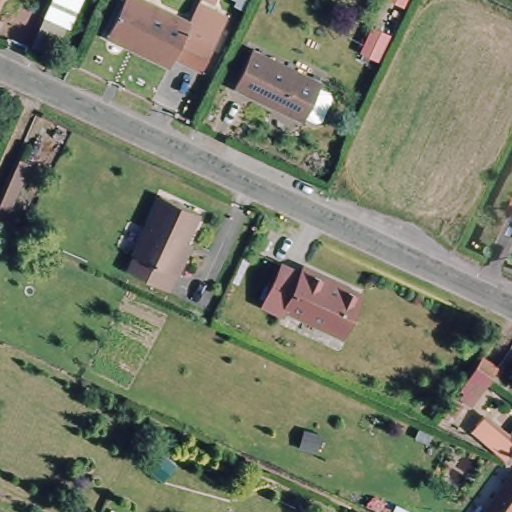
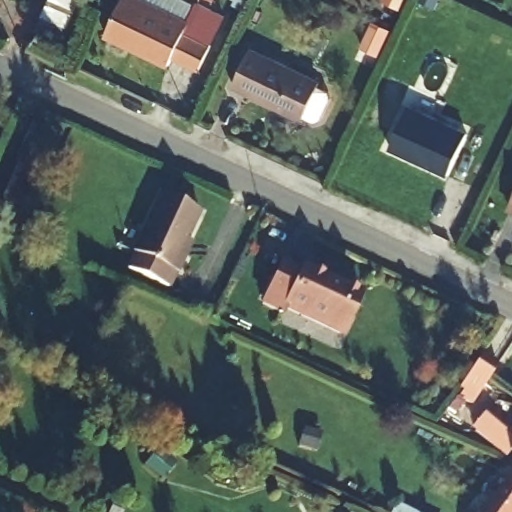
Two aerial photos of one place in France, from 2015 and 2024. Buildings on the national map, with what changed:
unchanged [(52,0),(76,0),(66,24),(46,14),(52,0)]
unchanged [(192,26),(220,40),(208,64),(181,49),(176,60),(114,32),(129,0),(157,0),(197,19),(192,26)]
unchanged [(318,84),(300,120),(230,87),(248,51),(318,84)]
new [(389,150),(409,105),(460,128),(457,135),(465,139),(447,176),(389,150)]
unchanged [(170,286),(126,266),(139,235),(157,194),(200,211),(182,252),(184,254),(170,286)]
unchanged [(510,204),(512,200),(512,205),(510,204)]
unchanged [(289,308),(287,313),(264,302),(284,261),(306,271),(309,265),(362,290),(342,333),(289,308)]
unchanged [(492,374),(471,405),(453,393),(476,360),(492,374)]
unchanged [(508,457),(498,453),(481,436),(480,438),(475,433),(477,430),(474,425),(485,413),(509,435),(512,432),(512,453),(508,457)]
unchanged [(512,466),(512,506),(507,512),(478,512),(512,466)]
new [(395,502),(418,512),(390,512),(395,502)]

